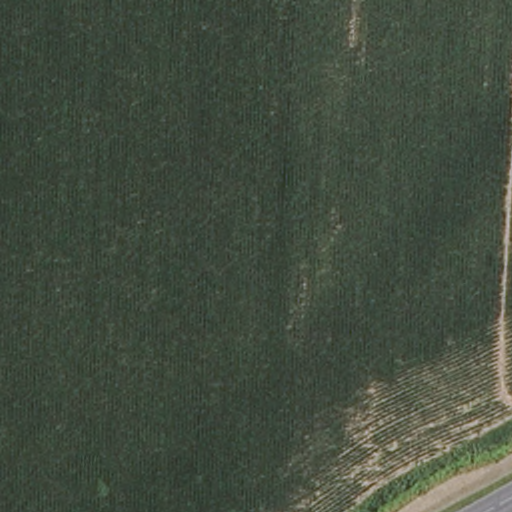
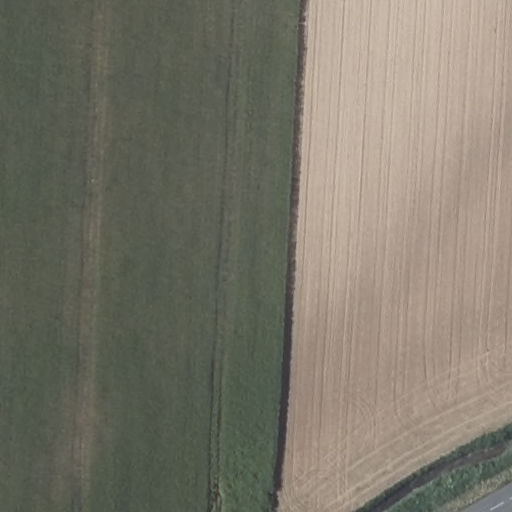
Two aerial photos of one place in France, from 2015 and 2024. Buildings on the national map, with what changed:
[]

